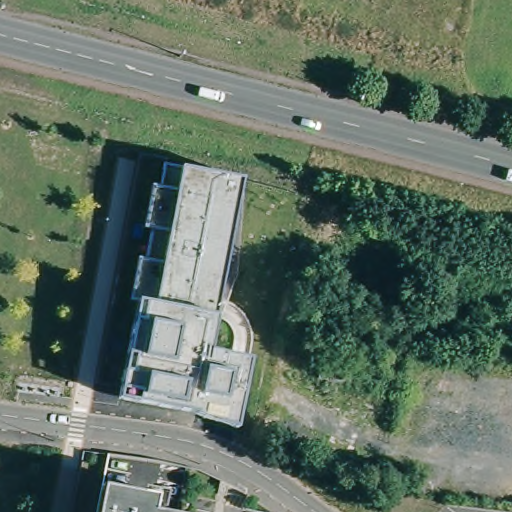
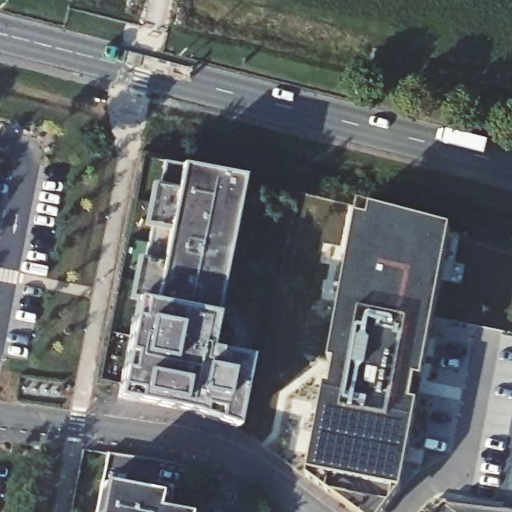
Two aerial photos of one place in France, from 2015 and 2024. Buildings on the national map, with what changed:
unchanged [(160,187),(164,164),(242,179),(210,351),(256,362),(241,432),(197,419),(198,415),(118,397),(137,300),(131,298),(138,259),(145,260),(150,231),(144,230),(151,185),(160,187)]
new [(398,491),(392,490),(388,512),(338,512),(341,496),(326,492),(329,477),(309,473),(357,222),(368,224),(370,215),(444,230),(411,402),(417,402),(398,491)]
unchanged [(142,486),(166,491),(162,512),(165,512),(97,512),(102,486),(141,492),(142,486)]

